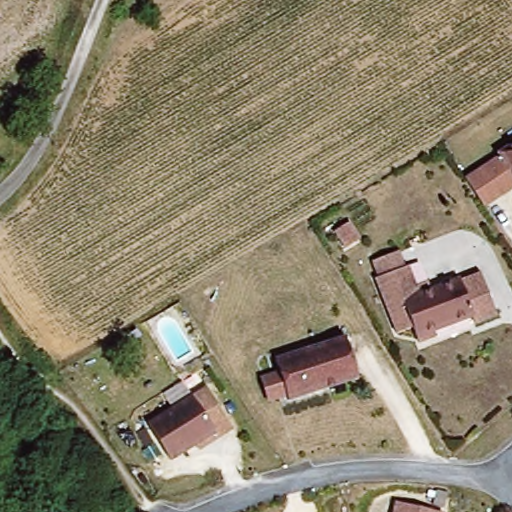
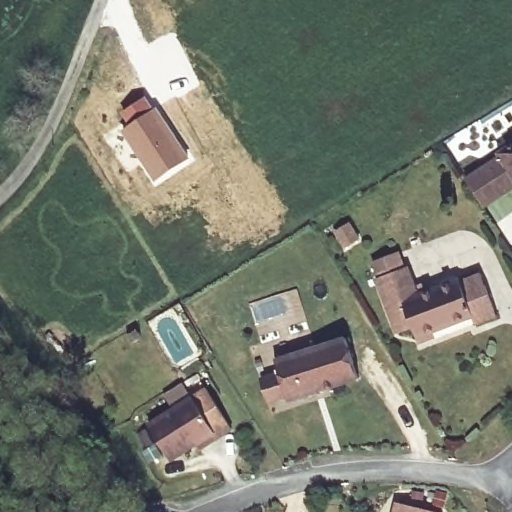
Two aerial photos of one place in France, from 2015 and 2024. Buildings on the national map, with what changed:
new [(128,125),(120,112),(145,95),(190,157),(155,182),(120,130),(128,125)]
unchanged [(500,200),(485,210),(467,183),(482,173),(502,160),(500,156),(512,148),(512,192),(500,200)]
unchanged [(462,284),(482,276),(499,319),(477,327),(475,320),(420,342),(415,330),(399,337),(377,282),(382,281),(376,266),(400,257),(405,271),(410,270),(418,290),(429,286),(432,292),(461,281),(462,284)]
unchanged [(290,399),(277,358),(347,335),(360,377),(290,399)]
unchanged [(218,436),(215,431),(172,458),(150,424),(208,387),(233,427),(218,436)]
unchanged [(423,512),(393,512),(395,505),(423,512)]

